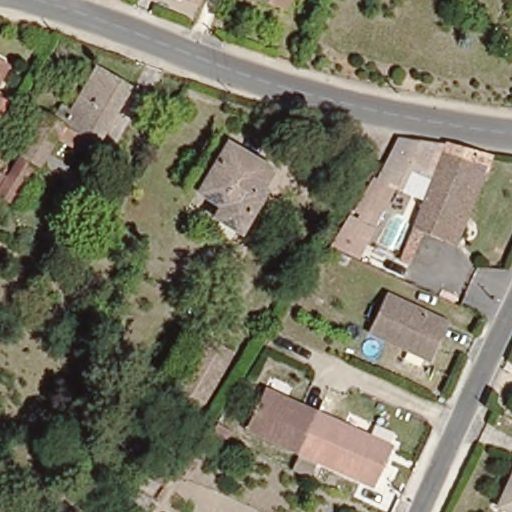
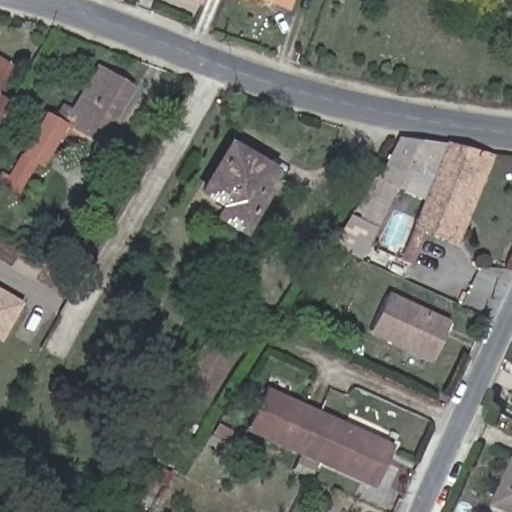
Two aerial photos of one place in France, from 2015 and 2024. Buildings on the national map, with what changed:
unchanged [(199,8),(180,0),(202,0),(199,8)]
unchanged [(278,0),(289,0),(288,4),(278,0)]
unchanged [(10,62),(0,79),(0,56),(10,62)]
unchanged [(23,158),(46,116),(63,125),(95,66),(132,85),(99,146),(92,157),(57,136),(40,168),(23,158)]
unchanged [(11,101),(0,118),(0,94),(11,101)]
unchanged [(333,246),(351,218),(355,220),(400,136),(420,142),(393,195),(377,230),(358,259),(333,246)]
unchanged [(268,159),(258,177),(265,180),(240,220),(218,206),(226,195),(204,181),(231,138),(268,159)]
unchanged [(422,202),(393,195),(420,142),(445,147),(422,202)]
unchanged [(445,232),(420,217),(463,143),(487,158),(445,232)]
unchanged [(368,325),(385,289),(418,303),(402,340),(368,325)]
new [(0,342),(0,291),(23,303),(0,342)]
unchanged [(418,303),(453,320),(438,356),(402,340),(418,303)]
unchanged [(235,352),(207,395),(188,384),(182,379),(210,336),(215,339),(235,352)]
unchanged [(305,452),(250,428),(266,393),(320,417),(305,452)]
unchanged [(379,476),(376,484),(305,452),(320,417),(369,437),(392,447),(379,476)]
unchanged [(512,479),(512,508),(501,503),(512,479)]

